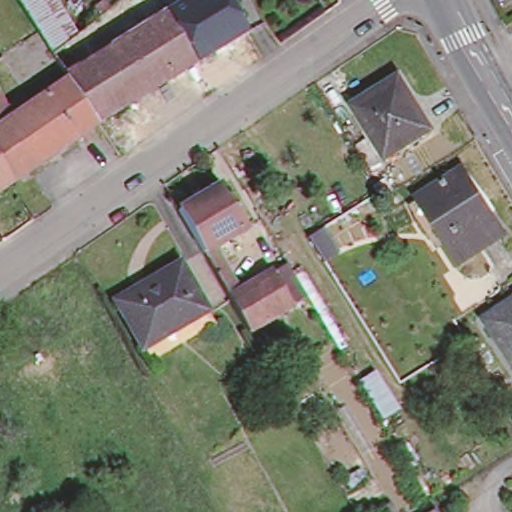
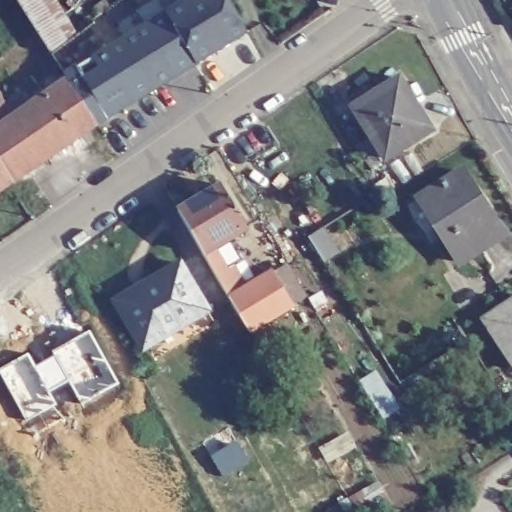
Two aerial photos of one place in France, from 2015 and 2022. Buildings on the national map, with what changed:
unchanged [(53,50),(20,0),(56,0),(77,31),(53,50)]
unchanged [(127,0),(134,0),(141,11),(134,16),(125,1),(127,0)]
unchanged [(246,29),(195,60),(167,10),(182,0),(229,0),(244,25),(246,29)]
unchanged [(141,4),(145,1),(152,11),(147,14),(141,4)]
unchanged [(5,119),(13,114),(6,101),(24,90),(31,101),(70,76),(66,71),(78,64),(167,10),(195,60),(106,115),(98,120),(58,147),(12,180),(0,187),(0,112),(5,119)]
unchanged [(358,142),(372,132),(353,104),(398,73),(433,125),(388,155),(374,165),(358,142)]
unchanged [(456,258),(414,196),(454,169),(497,231),(456,258)]
unchanged [(219,277),(203,250),(177,207),(221,181),(246,226),(214,245),(229,272),(219,277)]
unchanged [(138,345),(110,298),(174,260),(202,306),(138,345)]
unchanged [(288,305),(249,328),(229,294),(226,290),(232,286),(235,290),(267,270),(288,305)]
unchanged [(512,301),(512,362),(484,320),(512,301)]
new [(28,355),(35,367),(57,356),(55,352),(91,333),(119,383),(83,405),(70,381),(49,392),(58,408),(27,424),(0,374),(0,369),(28,355)]
new [(238,442),(249,464),(225,476),(212,455),(238,442)]
unchanged [(436,510),(437,512),(432,512),(436,510)]

